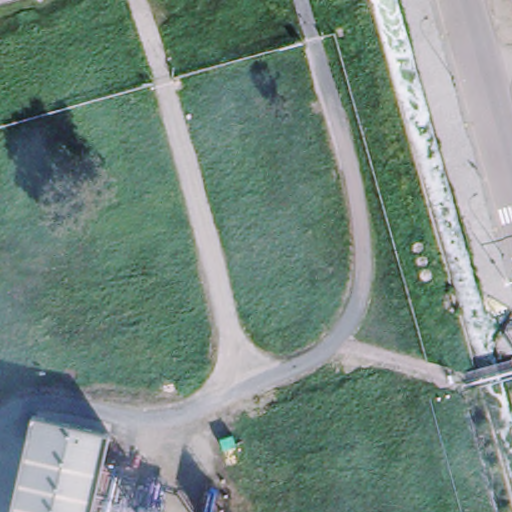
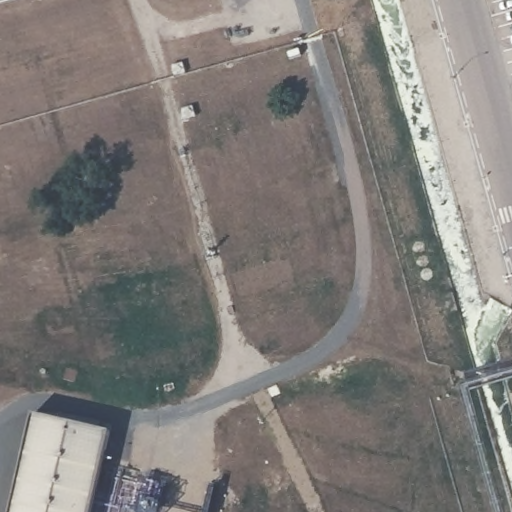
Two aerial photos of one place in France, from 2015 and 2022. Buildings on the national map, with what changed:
unchanged [(41,422),(115,439),(97,512),(20,512),(41,422)]

